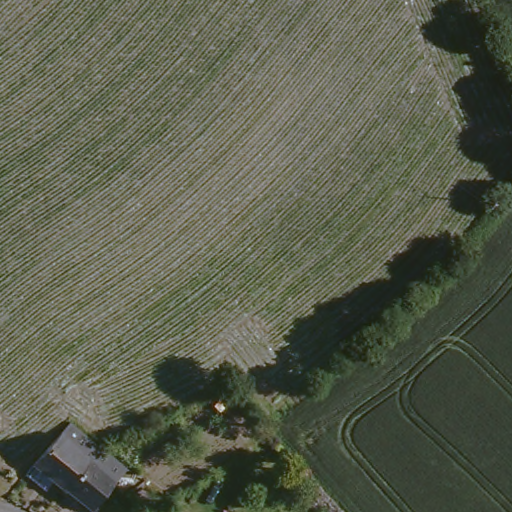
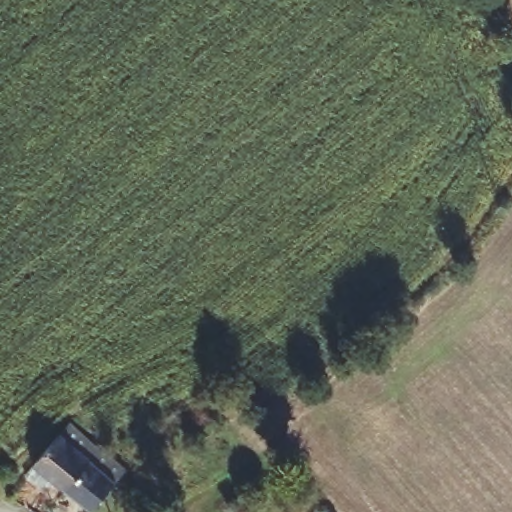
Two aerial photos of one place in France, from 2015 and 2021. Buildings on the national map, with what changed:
unchanged [(123,480),(97,512),(96,512),(71,489),(57,476),(47,486),(31,471),(40,461),(66,432),(76,421),(101,442),(117,455),(132,468),(123,480)]

